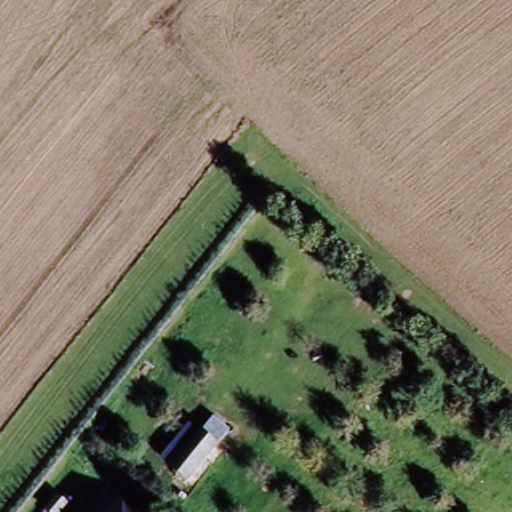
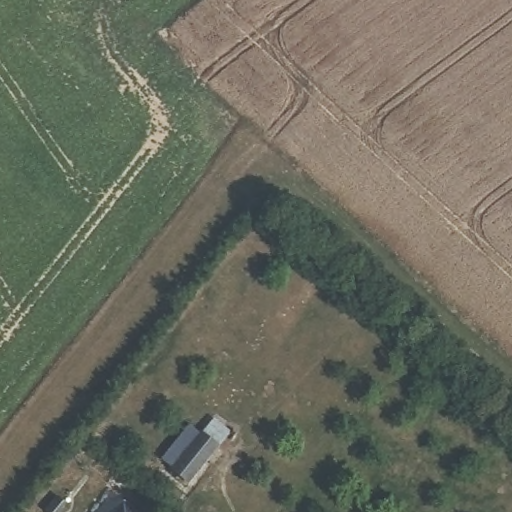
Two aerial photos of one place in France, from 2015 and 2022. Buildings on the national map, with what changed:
unchanged [(204,433),(219,444),(192,479),(175,466),(204,433)]
unchanged [(50,489),(39,503),(25,492),(36,478),(50,489)]
unchanged [(111,490),(140,512),(94,512),(111,490)]

